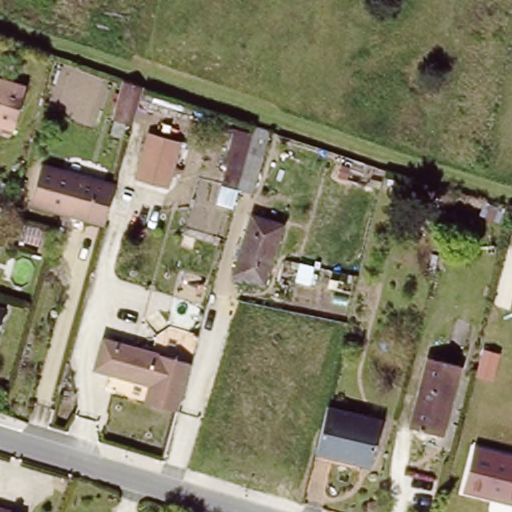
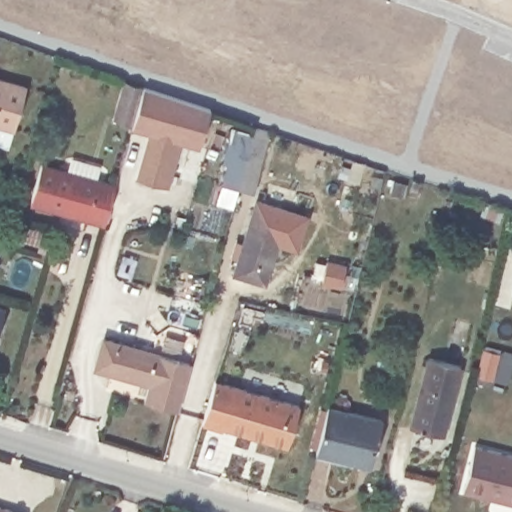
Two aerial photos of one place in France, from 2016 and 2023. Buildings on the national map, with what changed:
demolished [(140,87),(130,125),(110,119),(122,80),(140,87)]
new [(200,148),(173,141),(140,131),(130,128),(130,125),(110,119),(122,80),(140,87),(210,111),(200,148)]
unchanged [(0,128),(0,83),(22,89),(11,131),(0,128)]
unchanged [(173,141),(160,189),(126,179),(140,131),(173,141)]
unchanged [(261,157),(252,187),(235,184),(244,151),(261,157)]
unchanged [(29,205),(41,166),(113,187),(102,226),(29,205)]
unchanged [(286,223),(268,283),(232,273),(252,214),(286,223)]
unchanged [(0,311),(1,312),(0,315),(0,311)]
unchanged [(191,364),(177,411),(144,401),(149,384),(98,369),(107,339),(191,364)]
unchanged [(443,434),(410,427),(427,357),(460,367),(443,434)]
new [(287,446),(222,428),(220,432),(198,425),(213,380),(298,406),(287,446)]
unchanged [(382,420),(370,467),(316,453),(328,406),(382,420)]
unchanged [(512,455),(512,504),(462,490),(475,445),(512,455)]
unchanged [(16,512),(0,512),(0,507),(13,511),(16,512)]

